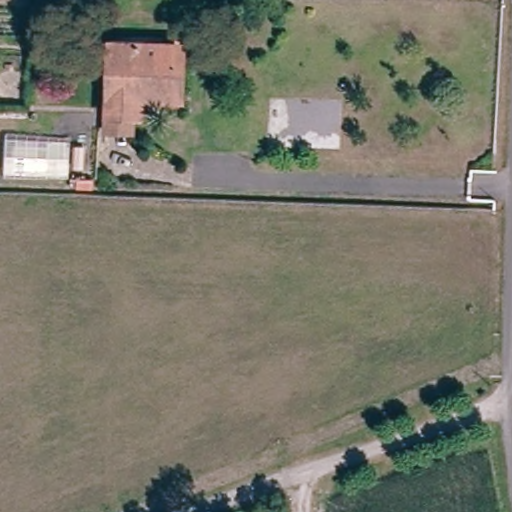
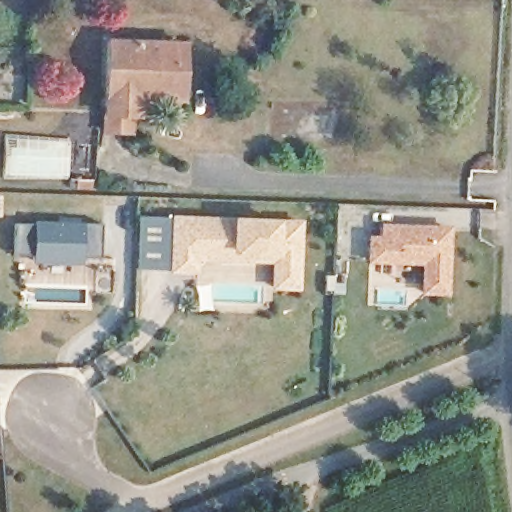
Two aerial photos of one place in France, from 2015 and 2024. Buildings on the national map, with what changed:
unchanged [(104,136),(104,115),(104,103),(107,43),(176,46),(186,47),(184,105),(177,104),(141,103),(142,91),(132,91),(131,105),(130,116),(129,136),(104,136)]
new [(299,220),(296,285),(273,284),(274,258),(248,256),(194,254),(193,268),(171,267),(173,215),(299,220)]
new [(173,218),(171,267),(170,271),(135,269),(136,216),(173,218)]
new [(56,220),(56,218),(60,218),(80,218),(101,219),(99,254),(80,254),(80,257),(31,256),(32,252),(12,251),(13,218),(56,220)]
new [(373,235),(385,236),(386,223),(451,226),(448,291),(425,290),(427,260),(372,257),(373,235)]

